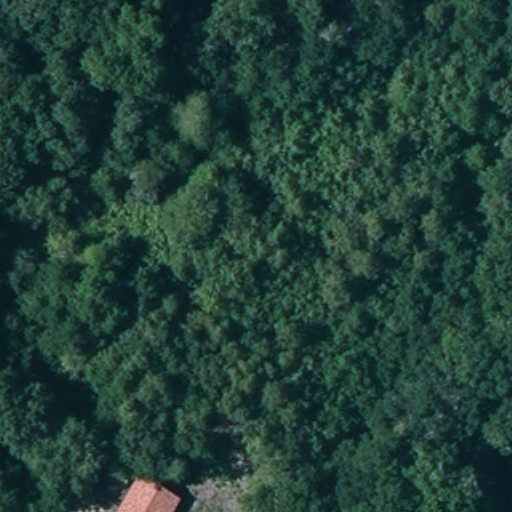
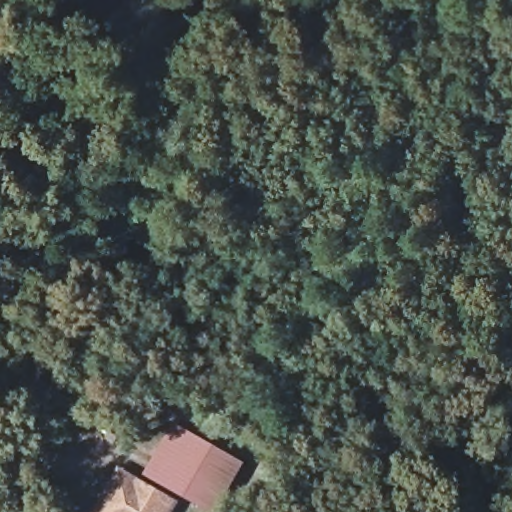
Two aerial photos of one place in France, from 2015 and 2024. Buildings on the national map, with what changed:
new [(144,478),(174,424),(214,447),(185,501),(144,478)]
new [(245,464),(219,512),(204,512),(185,501),(214,447),(245,464)]
new [(137,477),(117,512),(93,512),(116,466),(137,477)]
unchanged [(174,512),(117,512),(137,477),(180,501),(174,512)]

